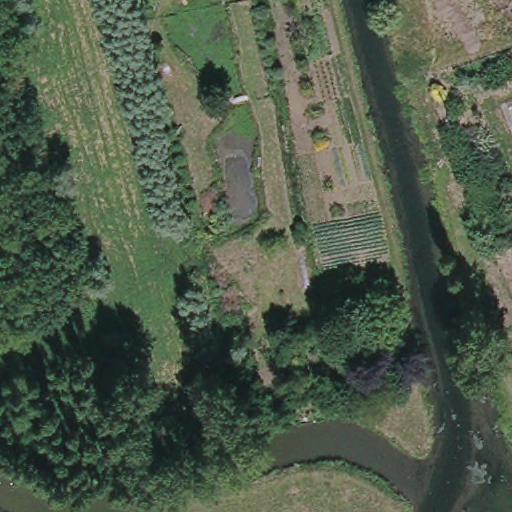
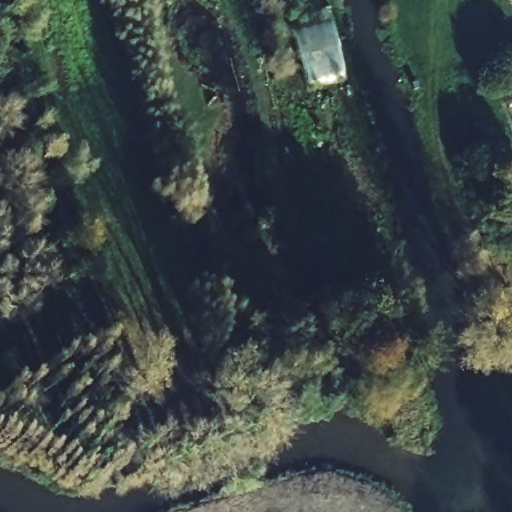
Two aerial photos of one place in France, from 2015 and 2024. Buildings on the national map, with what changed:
new [(322,24),(324,31),(332,29),(343,75),(307,84),(293,31),(322,24)]

